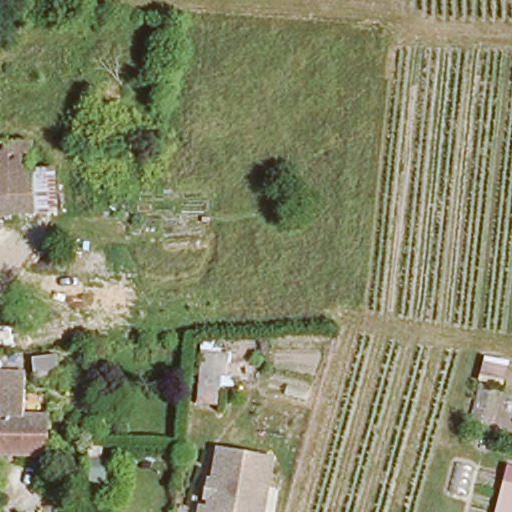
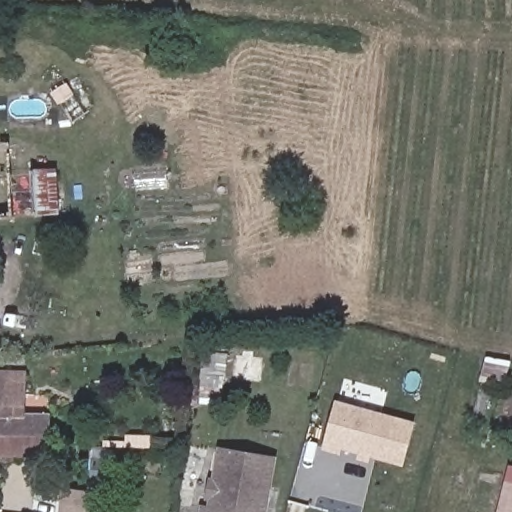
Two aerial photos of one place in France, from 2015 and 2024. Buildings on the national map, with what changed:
unchanged [(2,147),(26,145),(31,219),(5,221),(2,147)]
unchanged [(5,221),(0,222),(0,147),(2,147),(5,221)]
unchanged [(27,370),(27,414),(0,414),(0,371),(27,370)]
new [(416,422),(406,462),(343,447),(342,452),(327,449),(338,402),(416,422)]
unchanged [(27,414),(49,415),(48,450),(0,451),(0,414),(27,414)]
unchanged [(116,431),(115,449),(95,449),(96,431),(116,431)]
unchanged [(274,456),(268,512),(199,512),(200,509),(217,511),(224,450),(274,456)]
unchanged [(512,512),(501,512),(507,482),(512,484),(512,512)]

